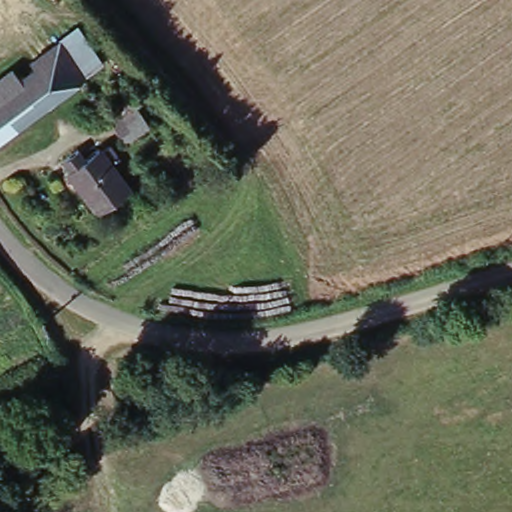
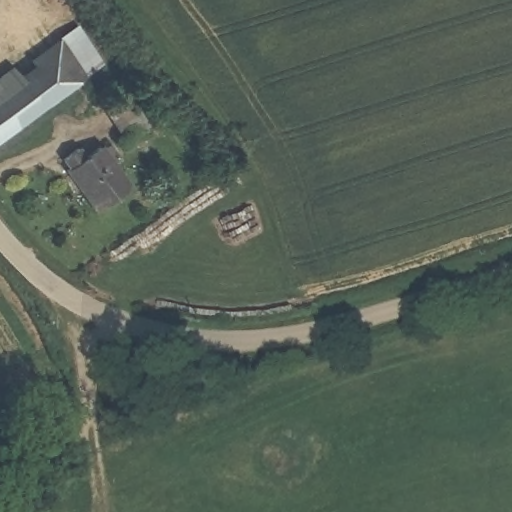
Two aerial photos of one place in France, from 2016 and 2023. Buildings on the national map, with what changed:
unchanged [(81,30),(106,68),(88,82),(61,43),(67,38),(81,30)]
unchanged [(34,63),(61,43),(88,82),(61,101),(38,69),(34,63)]
unchanged [(14,71),(21,82),(38,69),(61,101),(0,144),(0,81),(14,71)]
unchanged [(127,101),(148,130),(126,145),(106,117),(127,101)]
unchanged [(92,217),(62,176),(66,173),(61,166),(88,147),(95,157),(106,149),(114,160),(108,165),(126,189),(92,217)]

